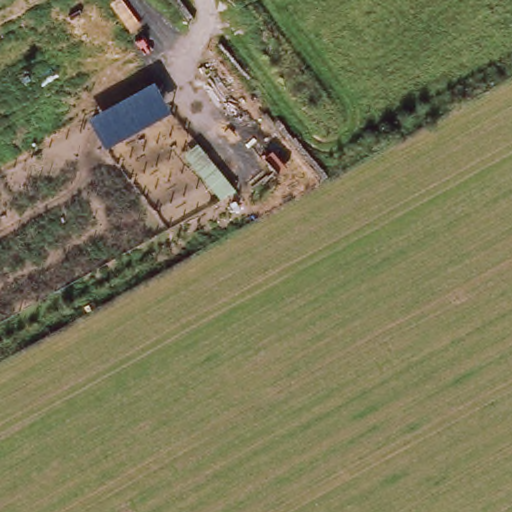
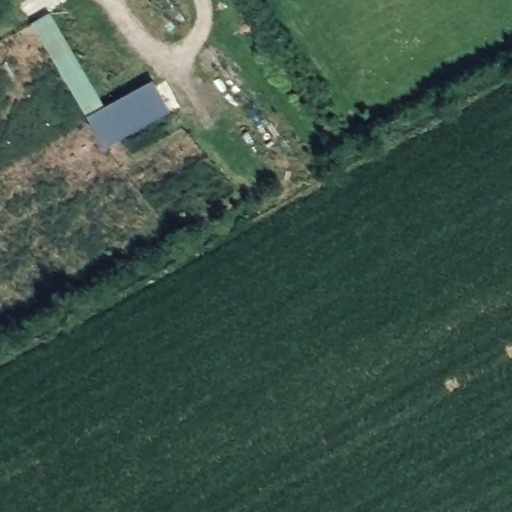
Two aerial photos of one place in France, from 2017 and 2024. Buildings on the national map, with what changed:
unchanged [(152,86),(167,114),(107,149),(89,119),(152,86)]

